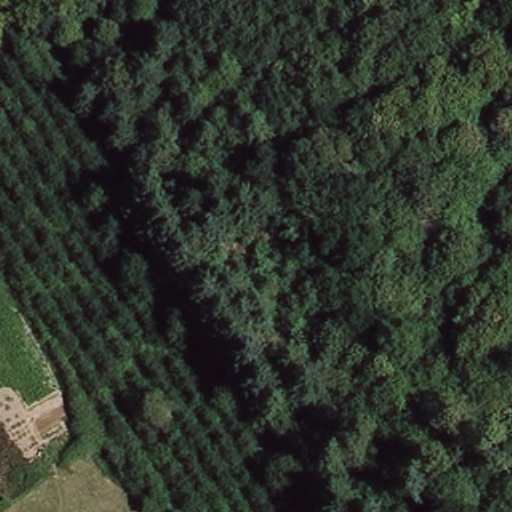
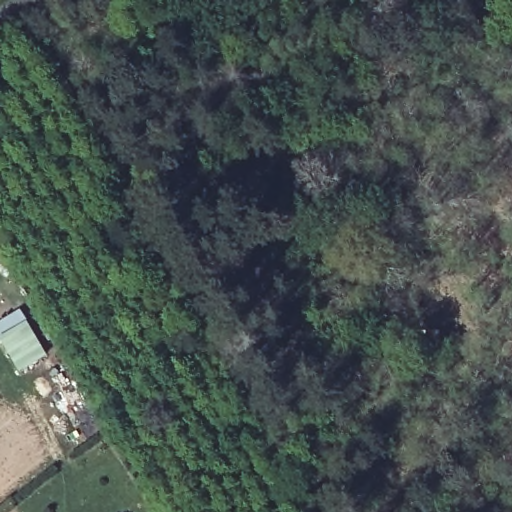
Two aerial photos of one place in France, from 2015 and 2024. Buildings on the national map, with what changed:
new [(46,357),(19,373),(0,340),(0,323),(19,311),(46,357)]

